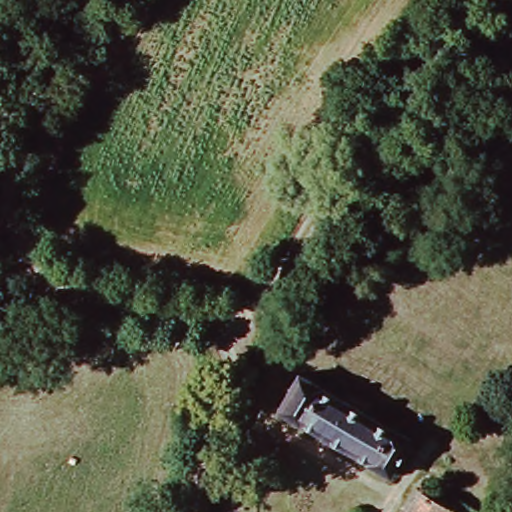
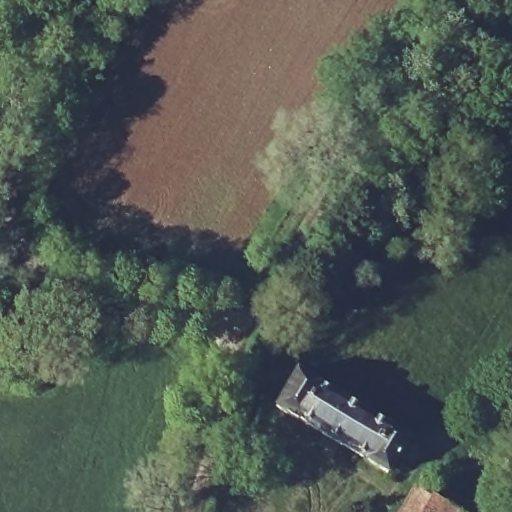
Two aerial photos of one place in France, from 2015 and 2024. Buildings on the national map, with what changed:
unchanged [(367,456),(298,415),(296,417),(273,403),(294,365),(318,380),(316,383),(385,424),(388,421),(408,433),(385,473),(365,461),(367,456)]
unchanged [(450,503),(445,512),(404,512),(421,485),(450,503)]
unchanged [(445,512),(450,503),(465,512),(445,512)]

